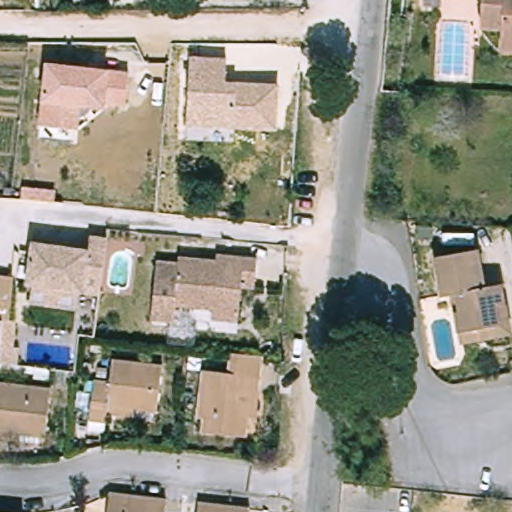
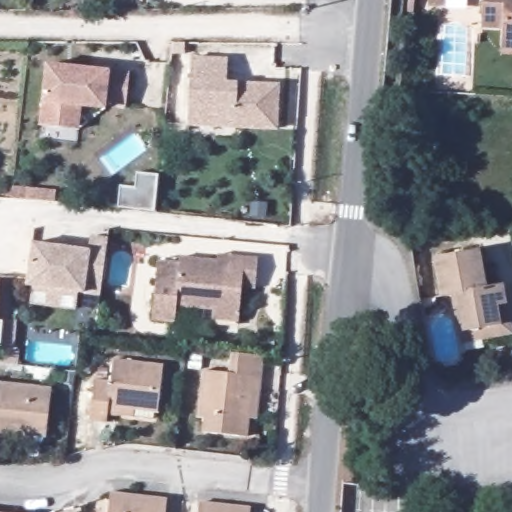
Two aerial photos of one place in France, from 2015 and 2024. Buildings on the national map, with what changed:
unchanged [(507,51),(508,32),(487,30),(488,0),(512,0),(512,52),(507,51)]
unchanged [(227,82),(278,85),(276,132),(187,125),(192,57),(225,59),(227,82)]
unchanged [(125,107),(105,106),(82,106),(77,128),(40,124),(41,104),(45,63),(111,70),(128,73),(125,107)]
unchanged [(28,285),(33,243),(89,250),(91,236),(107,238),(104,267),(100,294),(28,285)]
unchanged [(464,342),(462,332),(459,312),(464,311),(461,292),(447,294),(442,255),(488,249),(493,287),(509,285),(512,308),(512,335),(464,342)]
unchanged [(213,315),(215,308),(176,303),(175,320),(152,317),(158,258),(179,261),(180,256),(215,259),(216,252),(230,253),(259,256),(256,285),(243,284),(240,306),(238,318),(213,315)]
unchanged [(0,277),(13,278),(8,327),(2,326),(1,337),(0,337),(0,277)]
unchanged [(0,347),(19,350),(17,367),(0,365),(0,347)]
unchanged [(209,433),(209,420),(205,419),(205,413),(211,373),(235,375),(238,349),(269,352),(264,397),(256,396),(254,419),(252,438),(209,433)]
unchanged [(96,357),(161,364),(155,408),(155,412),(109,407),(108,418),(89,416),(91,399),(96,357)]
unchanged [(0,384),(55,389),(54,394),(49,433),(0,427),(0,384)]
unchanged [(385,415),(382,395),(399,392),(402,412),(385,415)]
unchanged [(113,494),(119,493),(126,493),(169,497),(168,512),(111,512),(113,494)]
unchanged [(202,501),(257,508),(256,512),(200,512),(202,501)]

